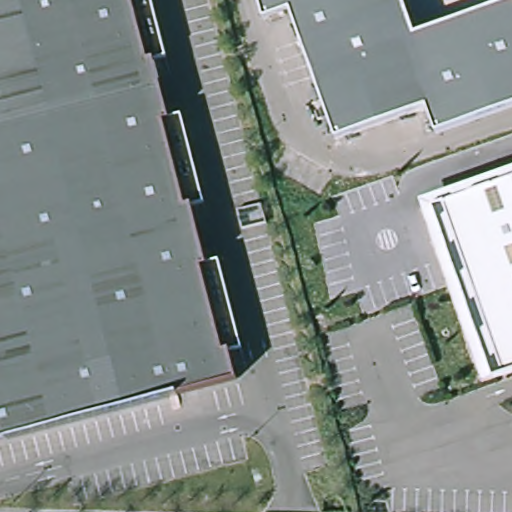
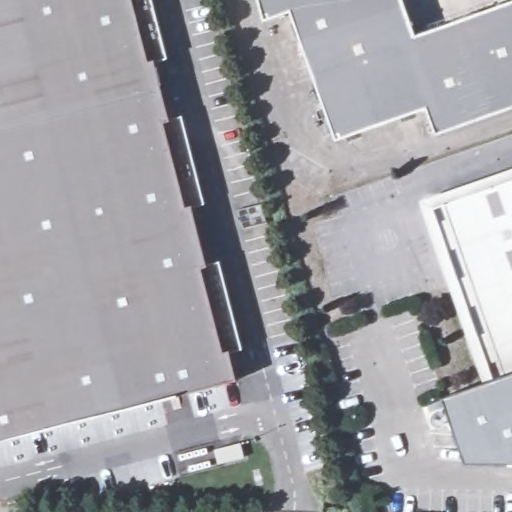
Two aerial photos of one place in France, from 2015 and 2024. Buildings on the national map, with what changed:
unchanged [(161,59),(149,62),(164,120),(176,116),(199,205),(186,207),(201,265),(213,262),(236,350),(225,352),(231,381),(0,441),(0,0),(146,0),(161,59)]
unchanged [(435,135),(426,109),(336,141),(290,12),(264,22),(258,0),(403,0),(415,35),(512,0),(512,108),(435,135)]
unchanged [(443,200),(512,175),(512,369),(504,372),(443,200)]
unchanged [(483,378),(423,207),(443,200),(504,372),(483,378)]
new [(465,462),(442,398),(486,383),(483,378),(504,372),(512,369),(512,464),(465,462)]

